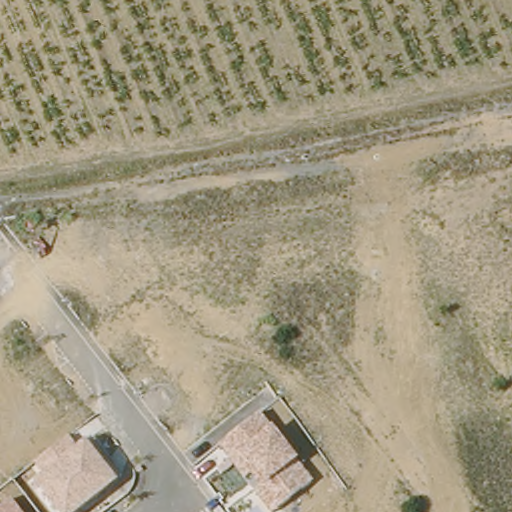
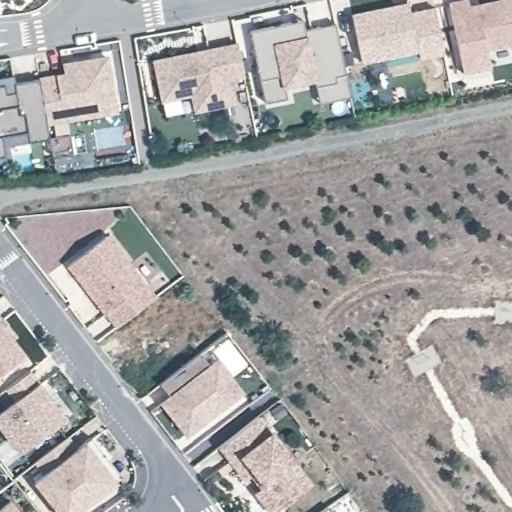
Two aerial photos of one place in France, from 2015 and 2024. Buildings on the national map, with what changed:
new [(449,2),(459,0),(468,0),(469,6),(495,0),(512,0),(512,45),(487,50),(491,68),(464,73),(449,2)]
new [(420,59),(418,50),(379,60),(382,73),(367,77),(364,64),(363,65),(353,13),(409,1),(411,12),(433,7),(445,53),(420,59)]
new [(251,32),(303,21),(306,31),(336,25),(351,97),(321,102),(316,81),(285,87),(288,97),(266,102),(251,32)]
new [(193,111),(191,96),(161,101),(152,59),(237,43),(244,78),(232,81),(237,104),(193,111)]
new [(63,73),(62,63),(106,56),(115,110),(46,121),(39,77),(63,73)]
new [(14,81),(39,77),(46,121),(48,136),(28,139),(26,129),(1,133),(4,153),(0,154),(0,76),(13,73),(14,81)]
new [(108,234),(156,297),(118,327),(107,314),(106,315),(68,266),(108,234)]
new [(0,376),(0,323),(26,356),(0,376)]
unchanged [(201,352),(211,365),(218,359),(242,390),(188,433),(163,402),(171,396),(161,383),(201,352)]
new [(30,369),(50,394),(54,399),(68,417),(21,453),(0,426),(0,413),(16,400),(7,388),(30,369)]
unchanged [(266,512),(253,495),(261,490),(252,476),(243,482),(218,445),(259,414),(274,432),(298,462),(313,482),(276,512),(266,512)]
unchanged [(74,512),(59,512),(34,482),(45,472),(35,461),(69,434),(80,445),(85,441),(117,482),(74,512)]
unchanged [(0,512),(0,508),(11,499),(21,512),(0,512)]

